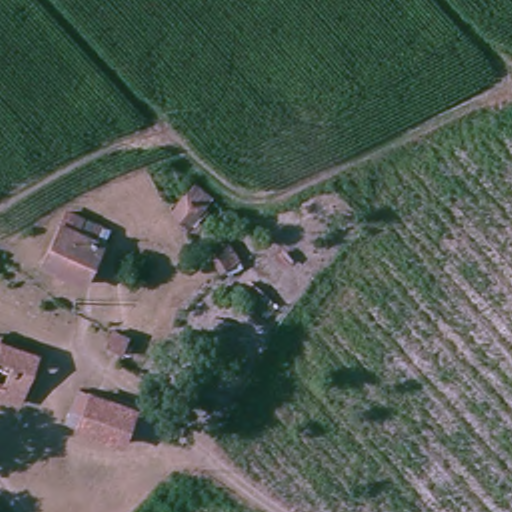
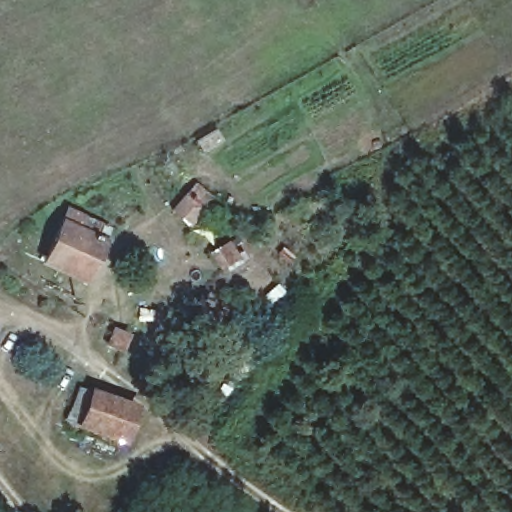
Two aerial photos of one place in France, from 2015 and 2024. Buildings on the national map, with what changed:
unchanged [(64,209),(107,225),(102,238),(82,284),(37,265),(60,219),(64,209)]
demolished [(17,403),(0,396),(0,338),(38,351),(17,403)]
unchanged [(86,390),(133,405),(120,444),(72,427),(86,390)]

